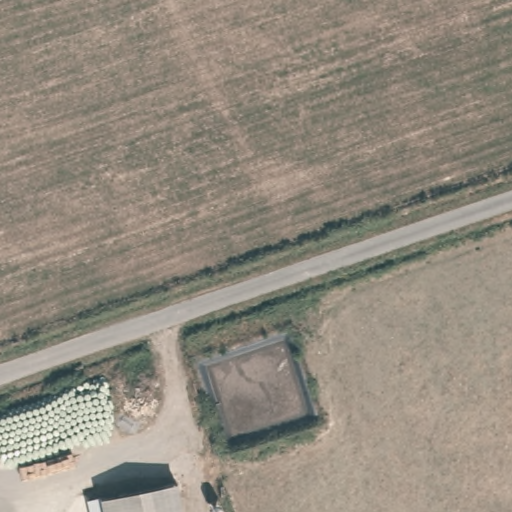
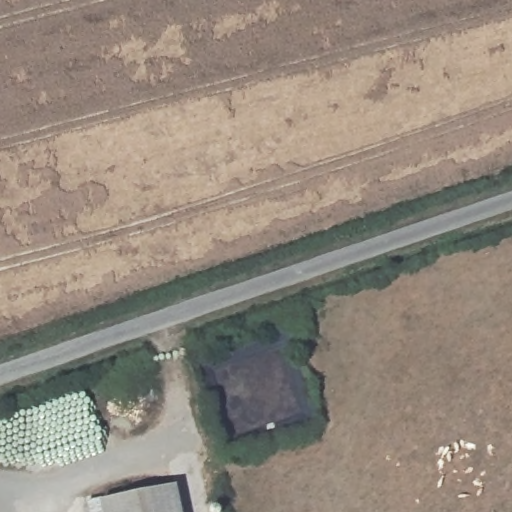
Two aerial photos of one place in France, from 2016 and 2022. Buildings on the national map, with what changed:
unchanged [(104,496),(177,482),(182,512),(107,512),(104,496)]

